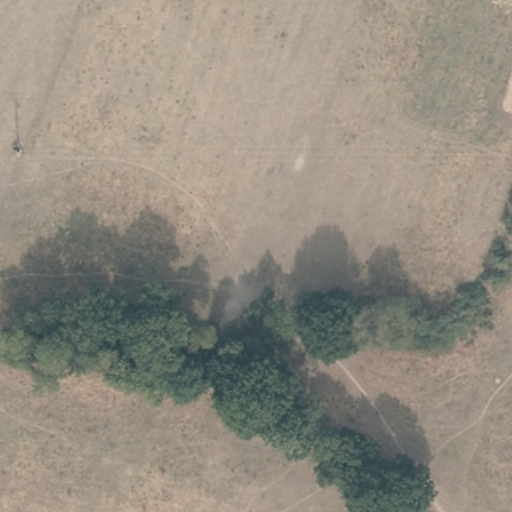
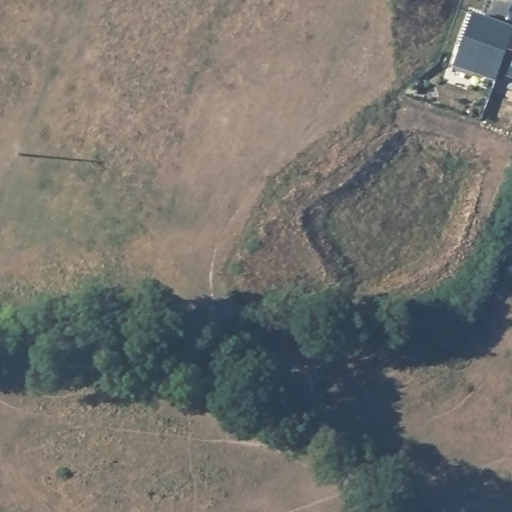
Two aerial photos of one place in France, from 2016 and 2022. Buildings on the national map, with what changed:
new [(472,13),(512,28),(512,34),(498,72),(495,81),(453,66),(472,13)]
new [(512,34),(512,77),(498,72),(512,34)]

